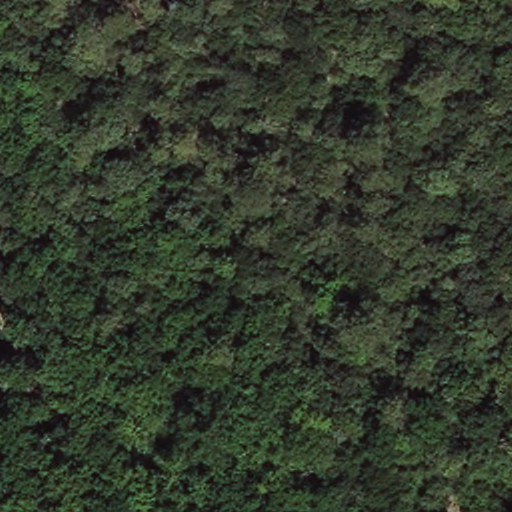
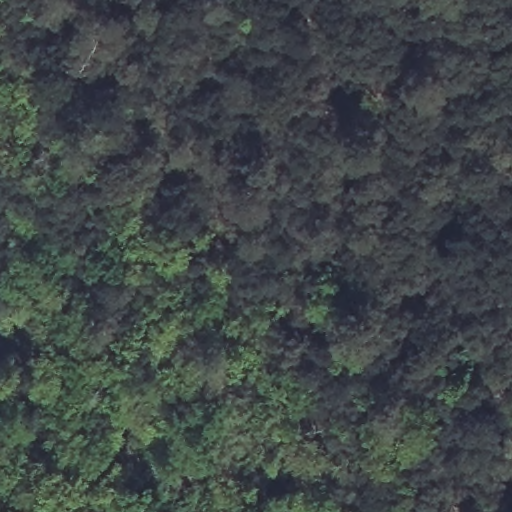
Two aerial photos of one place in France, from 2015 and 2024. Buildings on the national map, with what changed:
[]

